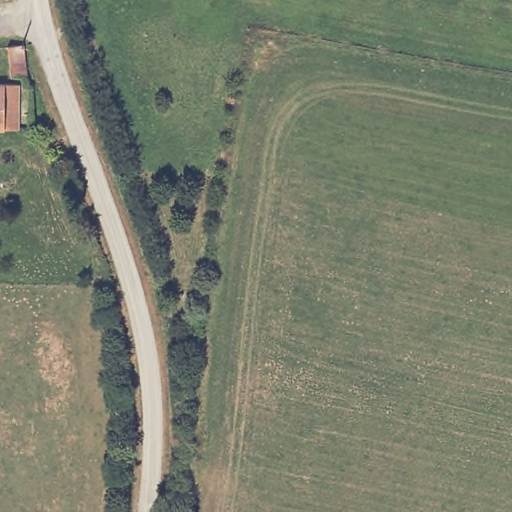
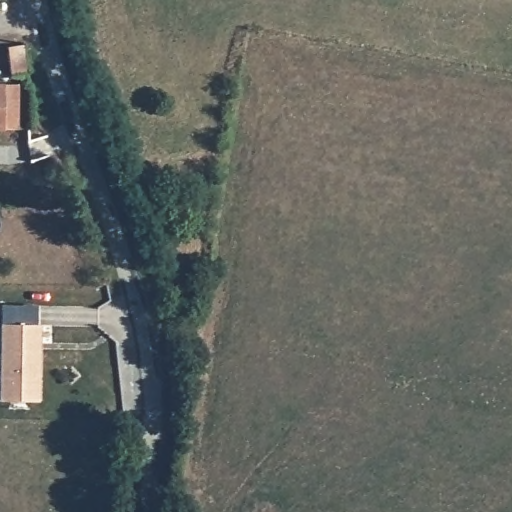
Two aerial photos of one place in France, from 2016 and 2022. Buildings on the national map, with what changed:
unchanged [(20,43),(25,70),(9,72),(5,45),(20,43)]
unchanged [(15,126),(0,125),(0,81),(15,81),(15,126)]
new [(41,325),(39,401),(0,401),(0,362),(1,324),(4,324),(3,305),(38,305),(36,325),(41,325)]

